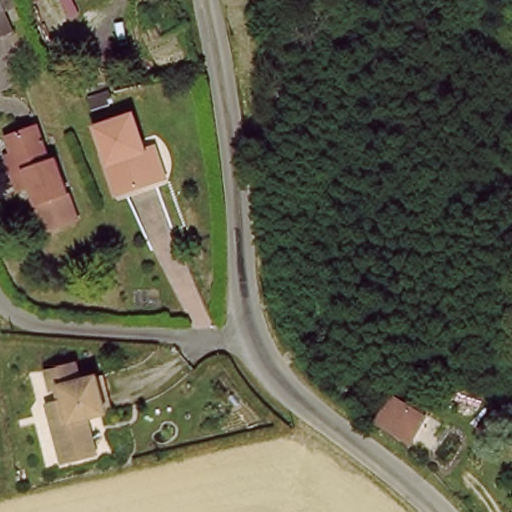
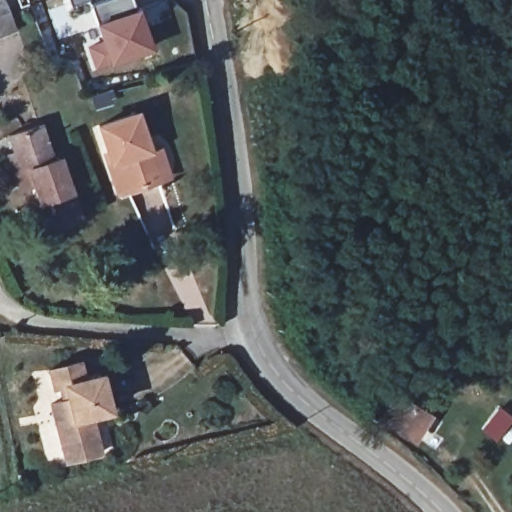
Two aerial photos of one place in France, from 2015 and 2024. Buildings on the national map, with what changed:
unchanged [(0,34),(0,0),(3,0),(16,28),(0,34)]
new [(34,8),(31,0),(55,0),(34,8)]
new [(83,19),(73,22),(63,0),(77,0),(83,19)]
new [(89,4),(99,0),(133,0),(136,7),(151,49),(93,71),(83,43),(98,38),(93,23),(89,4)]
unchanged [(174,180),(164,183),(124,195),(113,158),(102,124),(141,113),(151,144),(154,152),(164,149),(174,180)]
unchanged [(60,233),(55,221),(53,218),(30,173),(24,176),(5,140),(35,124),(53,160),(60,156),(83,204),(89,219),(60,233)]
unchanged [(63,404),(71,401),(68,390),(51,394),(45,375),(75,368),(80,383),(101,378),(112,415),(94,420),(104,455),(66,464),(57,431),(51,406),(63,404)]
unchanged [(396,402),(419,414),(408,436),(384,422),(396,402)]

